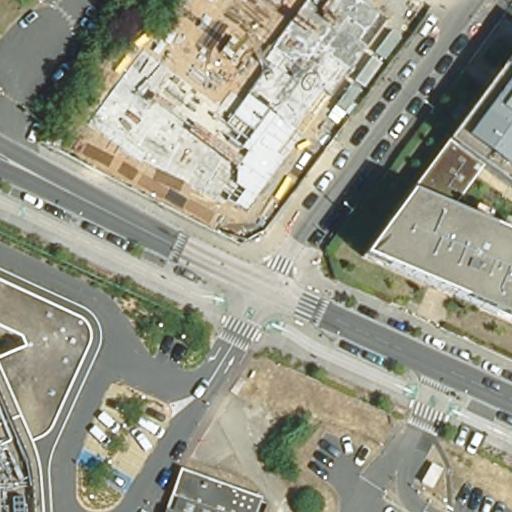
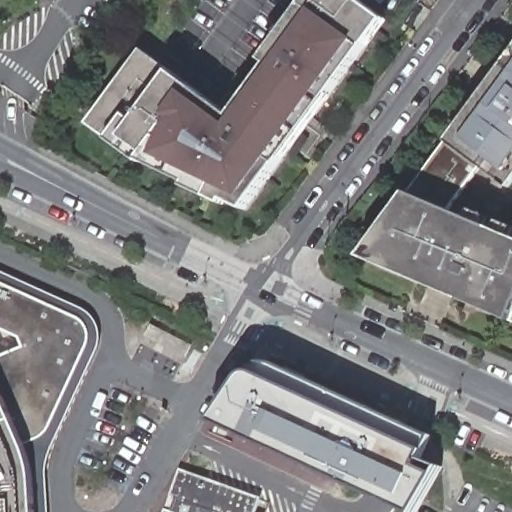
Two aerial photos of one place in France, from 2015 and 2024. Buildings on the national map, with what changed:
new [(173,71),(231,115),(269,65),(263,60),(306,0),(360,0),(388,20),(245,211),(143,162),(119,145),(173,71)]
new [(89,124),(144,49),(173,71),(119,145),(89,124)]
unchanged [(409,194),(414,183),(439,151),(446,142),(512,52),(512,186),(509,190),(477,169),(469,178),(454,199),(444,209),(512,237),(512,319),(363,257),(409,194)]
demolished [(99,152),(122,114),(119,112),(143,71),(159,80),(137,119),(269,195),(244,236),(99,152)]
unchanged [(38,437),(33,439),(31,440),(21,444),(16,433),(0,394),(0,362),(10,358),(23,354),(19,341),(4,334),(0,332),(0,288),(81,325),(89,338),(47,431),(38,437)]
new [(248,370),(260,364),(269,366),(432,440),(424,461),(443,469),(418,512),(411,512),(214,419),(248,370)]
unchanged [(21,444),(31,440),(33,439),(33,445),(37,512),(0,512),(0,394),(16,433),(21,444)]
unchanged [(249,512),(160,512),(161,510),(166,493),(174,469),(184,472),(254,496),(249,512)]

